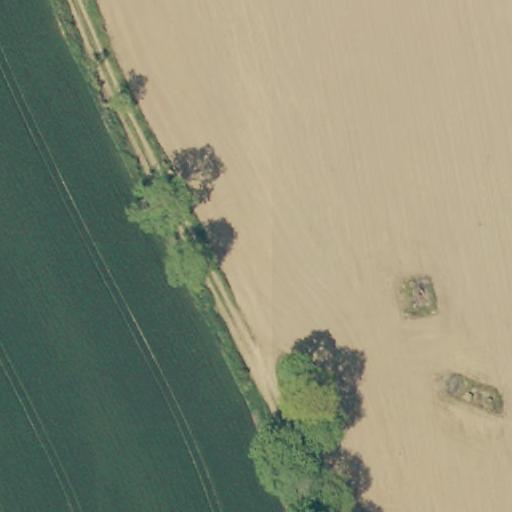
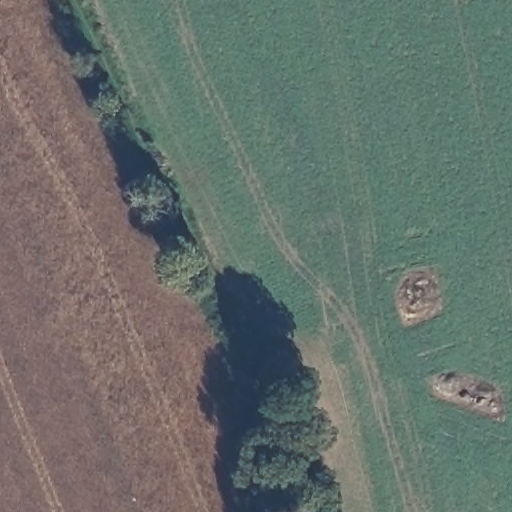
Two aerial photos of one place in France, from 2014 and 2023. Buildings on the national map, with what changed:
[]

